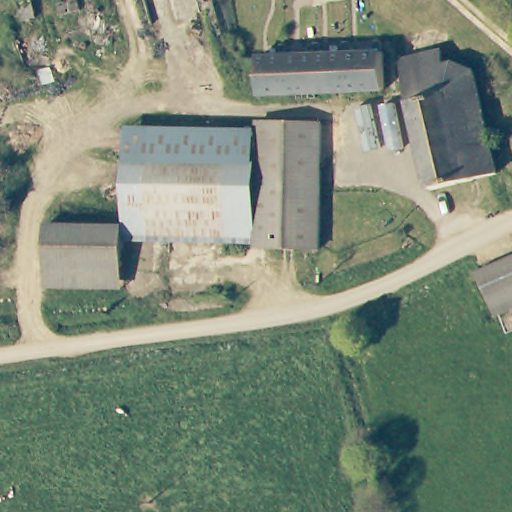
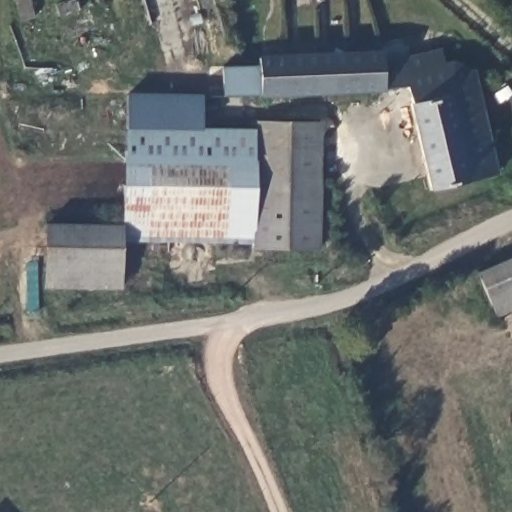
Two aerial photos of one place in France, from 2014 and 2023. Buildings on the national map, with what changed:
unchanged [(21,22),(16,0),(32,0),(36,19),(21,22)]
unchanged [(79,1),(80,12),(60,16),(58,7),(79,1)]
unchanged [(388,89),(348,92),(260,98),(258,60),(263,60),(383,52),(384,63),(388,86),(388,89)]
unchanged [(444,62),(453,61),(475,71),(498,174),(431,191),(404,83),(405,87),(388,89),(383,52),(398,60),(443,53),(444,62)]
unchanged [(222,96),(222,64),(258,66),(260,98),(222,96)]
new [(155,130),(126,130),(126,92),(204,95),(203,132),(155,130)]
unchanged [(234,215),(256,215),(258,134),(258,125),(322,127),(319,252),(254,250),(254,241),(234,240),(234,215)]
unchanged [(124,237),(126,130),(155,130),(258,134),(256,215),(234,215),(234,240),(151,237),(124,237)]
unchanged [(45,289),(46,226),(121,227),(121,242),(91,244),(104,291),(49,289),(45,289)]
unchanged [(120,291),(104,291),(91,244),(121,242),(120,291)]
unchanged [(488,308),(477,281),(512,266),(512,298),(488,308)]

